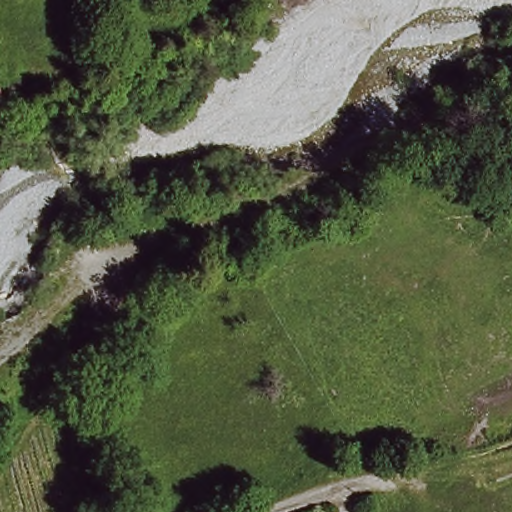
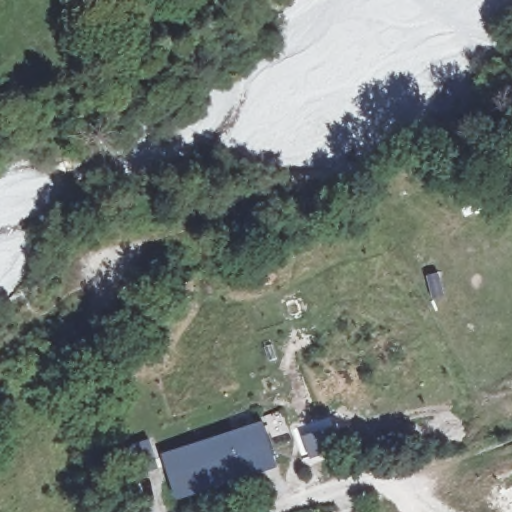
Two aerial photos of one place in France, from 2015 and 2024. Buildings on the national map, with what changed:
new [(177,500),(163,456),(262,423),(279,467),(177,500)]

